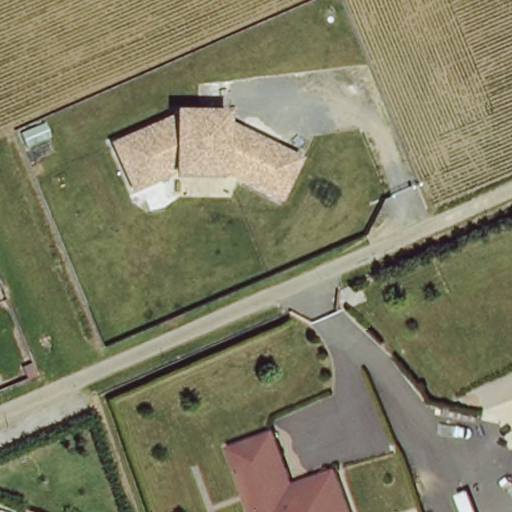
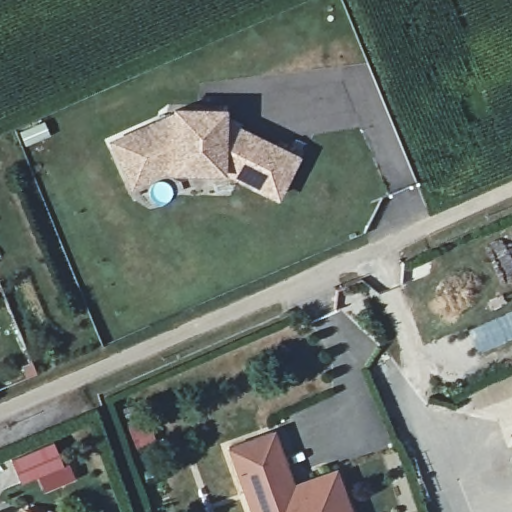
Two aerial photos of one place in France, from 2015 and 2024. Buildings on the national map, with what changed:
unchanged [(131,188),(111,145),(173,118),(173,113),(220,114),(220,124),(294,160),(275,198),(237,179),(219,171),(219,174),(171,172),(171,170),(154,178),(131,188)]
unchanged [(252,512),(228,450),(271,432),(292,489),(334,475),(348,512),(252,512)]
new [(48,445),(63,463),(68,462),(74,482),(43,495),(38,477),(19,485),(10,460),(48,445)]

